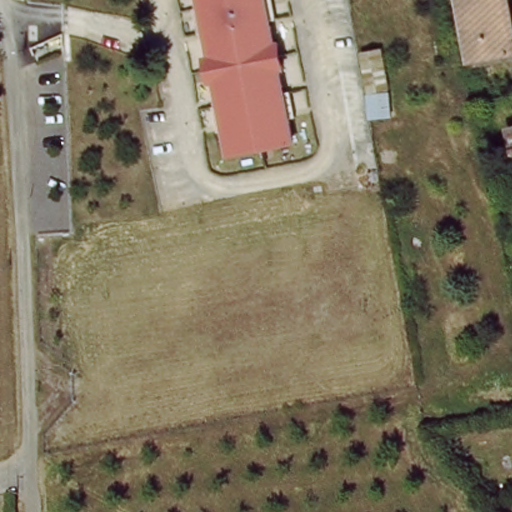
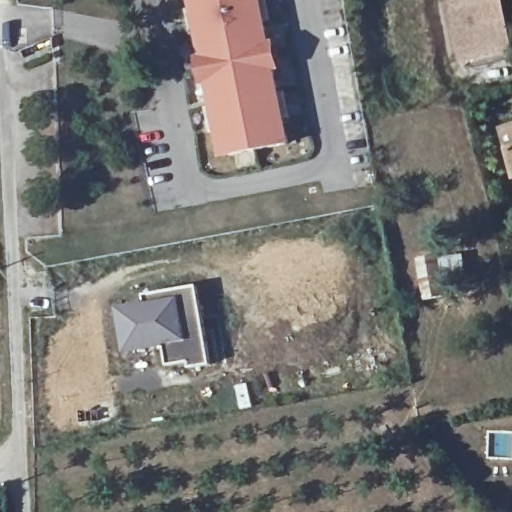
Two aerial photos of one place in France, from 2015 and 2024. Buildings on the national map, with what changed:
unchanged [(282,151),(217,163),(192,0),(255,0),(277,123),(282,151)]
unchanged [(255,0),(285,0),(305,120),(277,123),(255,0)]
unchanged [(510,54),(463,62),(453,0),(501,0),(510,54)]
unchanged [(512,129),(512,153),(507,130),(512,129)]
new [(145,306),(144,297),(195,288),(208,365),(187,368),(187,365),(165,367),(162,347),(123,354),(117,310),(145,306)]

